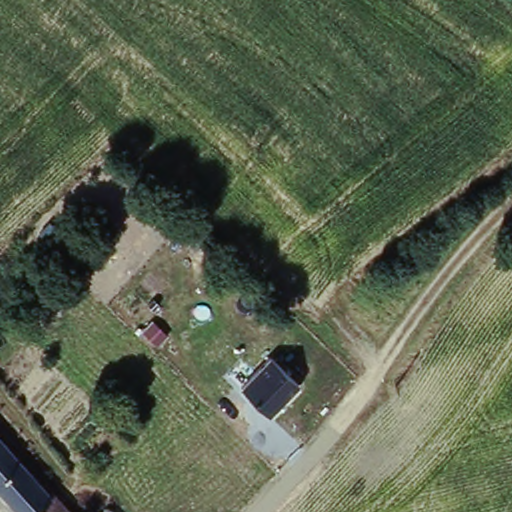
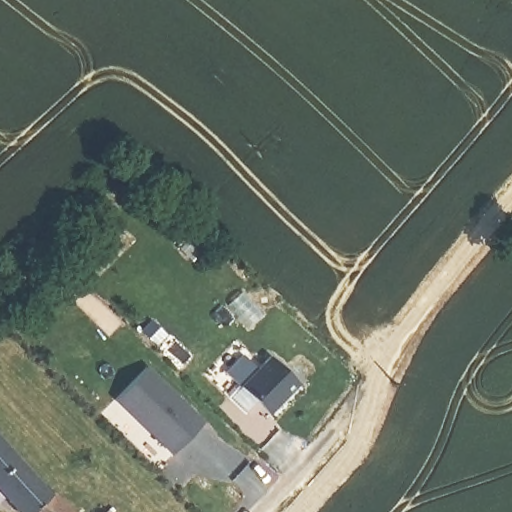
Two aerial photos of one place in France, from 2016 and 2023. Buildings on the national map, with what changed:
unchanged [(268,413),(242,386),(271,357),(299,384),(268,413)]
new [(206,420),(173,455),(116,401),(149,365),(206,420)]
unchanged [(0,442),(65,511),(65,512),(15,512),(0,496),(0,442)]

